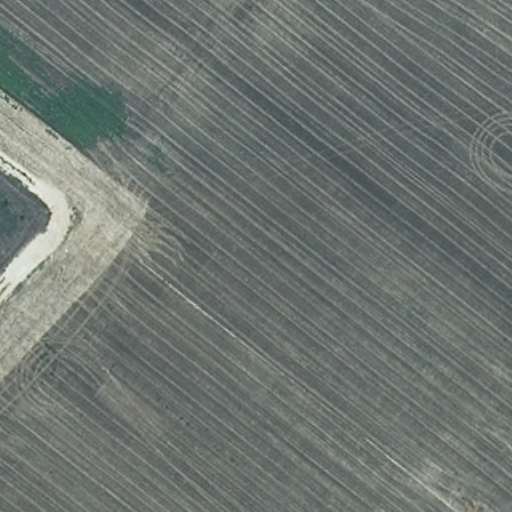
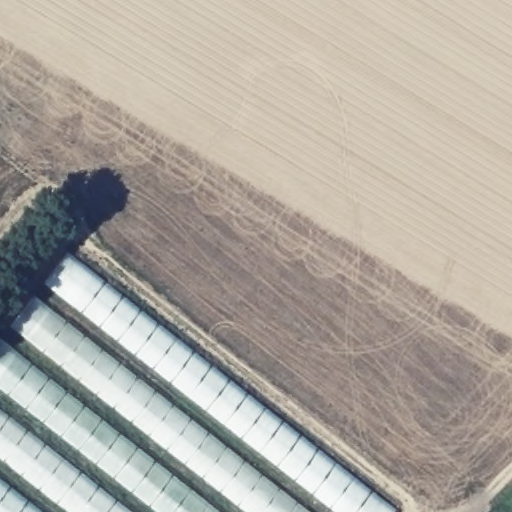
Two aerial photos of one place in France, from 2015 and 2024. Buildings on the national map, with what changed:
new [(0,512),(0,336),(66,250),(396,509),(394,512),(0,512)]

